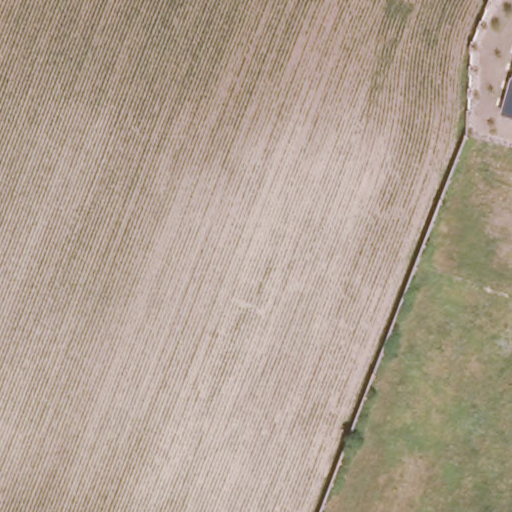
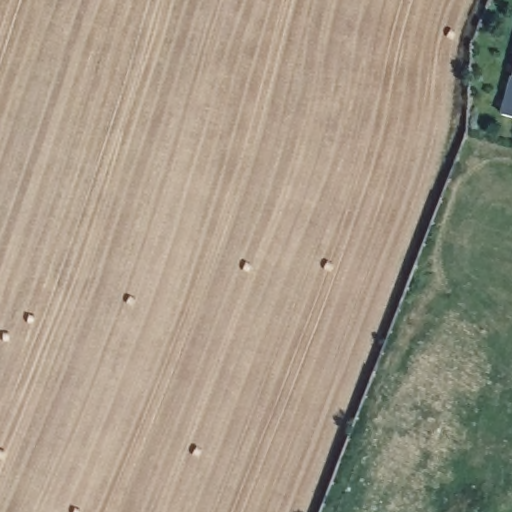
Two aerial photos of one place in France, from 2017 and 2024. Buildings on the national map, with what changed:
unchanged [(502,114),(512,76),(512,117),(502,114)]

